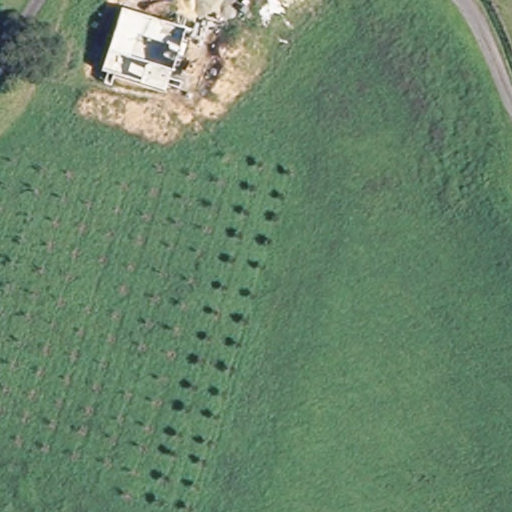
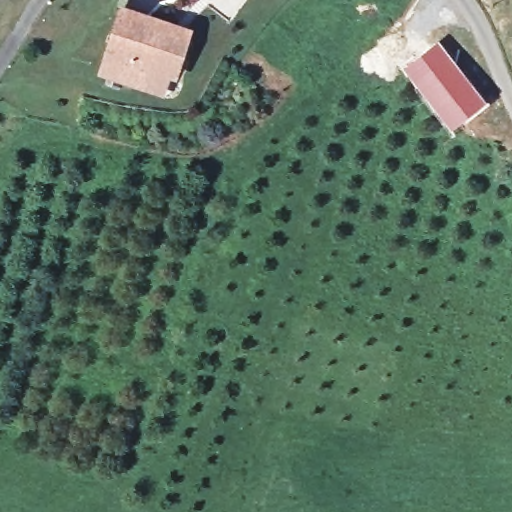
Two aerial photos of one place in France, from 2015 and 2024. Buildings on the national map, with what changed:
new [(119,4),(194,28),(178,78),(170,76),(164,96),(97,74),(119,4)]
new [(439,39),(488,101),(450,131),(401,67),(439,39)]

